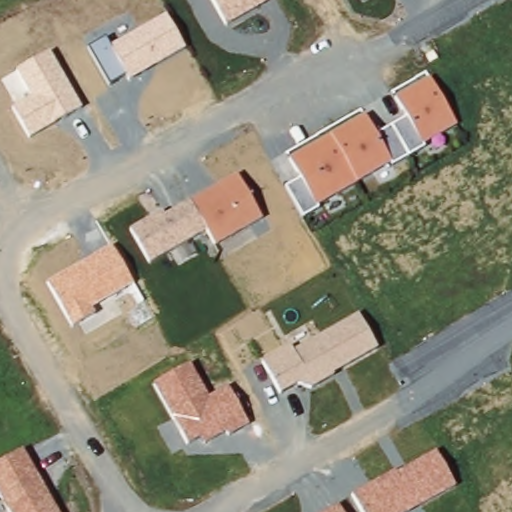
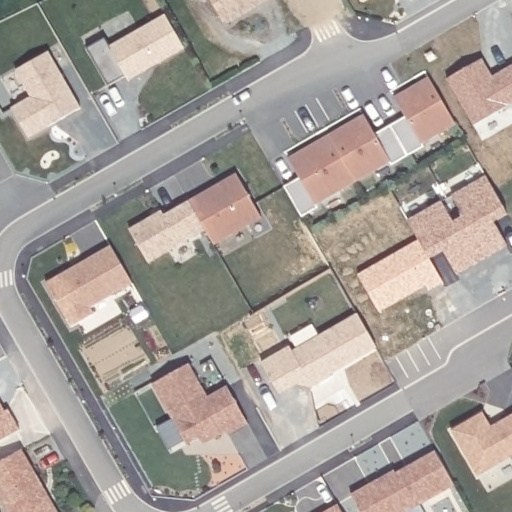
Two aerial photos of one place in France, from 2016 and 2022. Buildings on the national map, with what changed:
unchanged [(226,26),(210,0),(268,0),(226,26)]
unchanged [(104,41),(109,48),(165,18),(185,50),(129,83),(126,76),(109,86),(87,50),(104,41)]
unchanged [(34,99),(16,72),(50,53),(81,108),(29,138),(13,109),(34,99)]
new [(512,64),(512,104),(473,125),(447,79),(483,60),(492,74),(512,64)]
unchanged [(456,125),(422,143),(425,146),(390,165),(388,162),(316,203),(318,207),(302,216),(285,185),(298,177),(287,156),(363,113),(375,134),(403,117),(392,96),(428,75),(456,125)]
unchanged [(260,214),(212,242),(206,230),(147,262),(129,227),(162,209),(165,213),(237,171),(260,214)]
new [(442,202),(453,222),(464,217),(452,196),(487,177),(508,213),(495,223),(507,244),(457,274),(444,251),(430,259),(408,220),(442,202)]
unchanged [(110,246),(133,285),(92,307),(96,314),(71,328),(45,284),(110,246)]
unchanged [(378,348),(311,388),(297,384),(280,393),(262,361),(290,345),(293,350),(357,313),(378,348)]
unchanged [(191,366),(209,397),(227,388),(249,425),(229,437),(227,431),(206,442),(203,438),(187,446),(152,386),(191,366)]
new [(512,456),(478,475),(452,431),(485,412),(491,425),(512,414),(512,456)]
unchanged [(57,512),(9,512),(0,496),(0,464),(22,452),(57,512)]
unchanged [(397,476),(434,454),(455,486),(406,512),(360,512),(352,496),(392,472),(397,476)]
unchanged [(338,512),(325,512),(335,506),(338,512)]

